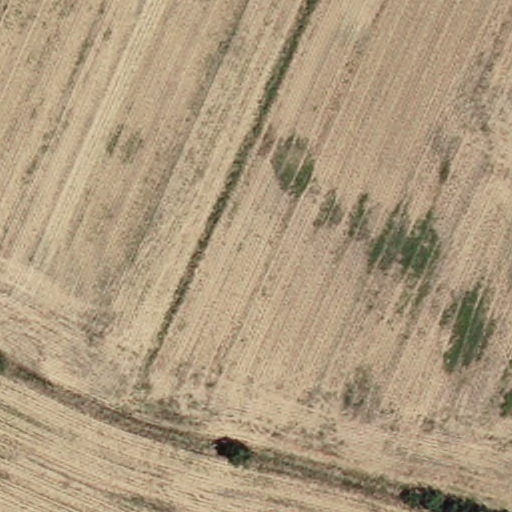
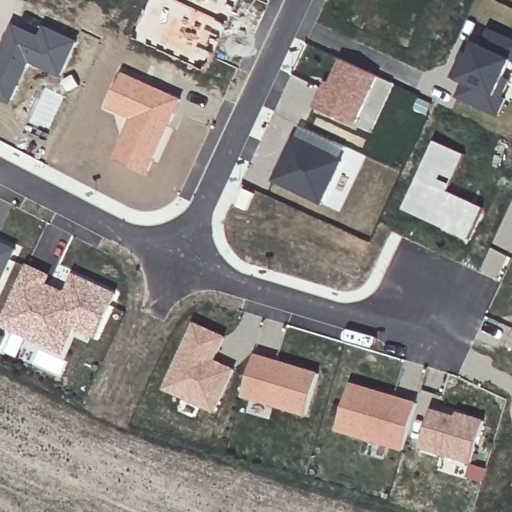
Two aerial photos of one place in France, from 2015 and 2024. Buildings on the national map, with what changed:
new [(152,0),(176,0),(228,24),(221,41),(214,38),(208,50),(214,54),(205,71),(134,37),(152,0)]
new [(236,9),(228,24),(176,0),(231,0),(229,5),(236,9)]
new [(15,24),(40,36),(45,27),(79,42),(62,78),(31,63),(12,105),(0,99),(0,53),(15,24)]
new [(454,77),(467,51),(471,52),(476,41),(481,43),(490,28),(512,39),(512,63),(505,77),(512,81),(512,82),(505,98),(507,99),(498,117),(457,97),(465,83),(454,77)]
new [(323,82),(327,83),(338,60),(374,76),(352,126),(311,107),(319,89),(323,82)]
new [(114,159),(133,119),(109,107),(124,72),(184,100),(148,176),(114,159)]
new [(321,200),(274,177),(295,135),(341,158),(321,200)]
new [(435,141),(466,155),(449,191),(485,207),(469,239),(404,210),(435,141)]
new [(255,194),(247,211),(239,207),(246,190),(255,194)]
new [(14,250),(0,281),(0,244),(14,250)]
new [(49,276),(45,285),(66,295),(75,276),(116,295),(96,337),(75,327),(63,352),(0,323),(26,266),(49,276)]
new [(165,383),(195,320),(224,333),(214,356),(234,366),(214,407),(165,383)]
new [(512,339),(512,346),(509,345),(512,339)]
new [(319,374),(306,415),(242,396),(254,355),(319,374)]
new [(349,383),(416,403),(415,406),(404,443),(402,450),(335,430),(349,383)]
new [(454,417),(456,413),(464,416),(483,421),(470,463),(418,448),(429,410),(454,417)]

